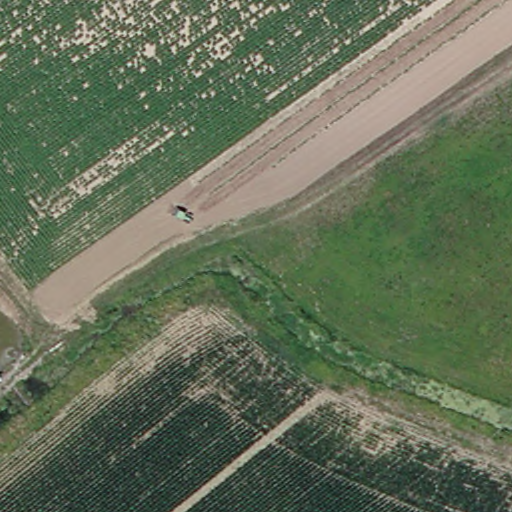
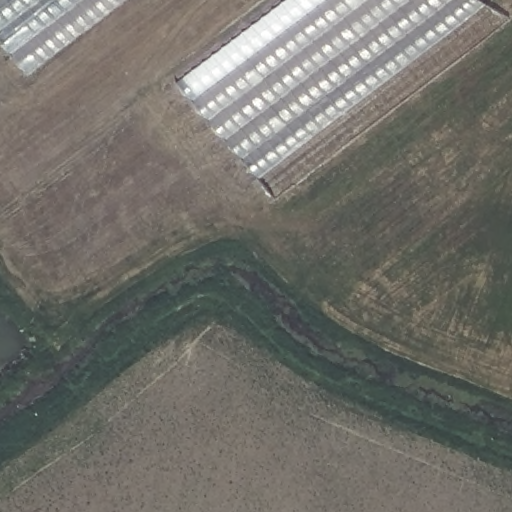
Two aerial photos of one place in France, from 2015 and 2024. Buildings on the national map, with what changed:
new [(0,35),(0,0),(130,0),(33,75),(0,35)]
new [(279,197),(183,80),(287,0),(485,0),(512,16),(279,197)]

